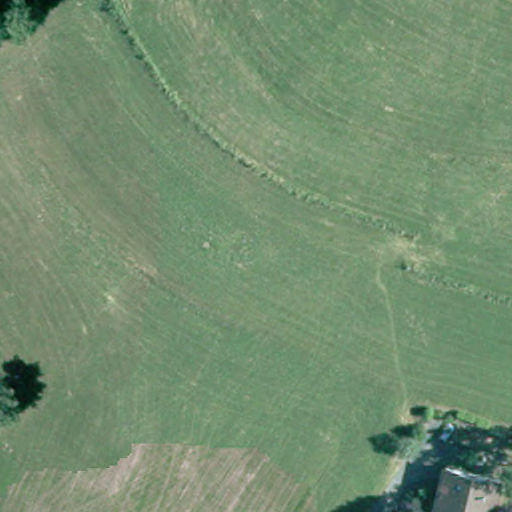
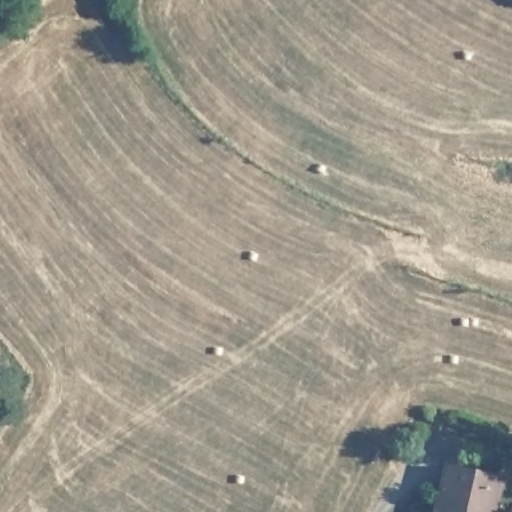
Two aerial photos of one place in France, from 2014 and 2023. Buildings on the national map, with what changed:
unchanged [(477,451),(502,455),(500,473),(504,475),(496,512),(443,512),(439,511),(442,482),(445,463),(452,465),(474,469),(477,451)]

